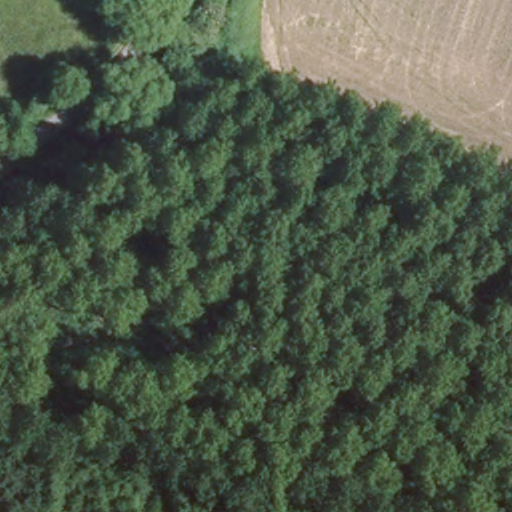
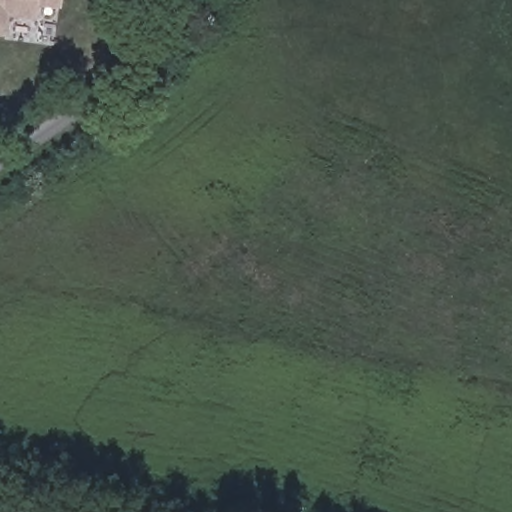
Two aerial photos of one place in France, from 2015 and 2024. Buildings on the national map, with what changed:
new [(35,4),(32,18),(7,14),(3,33),(0,32),(0,0),(59,0),(58,6),(35,4)]

